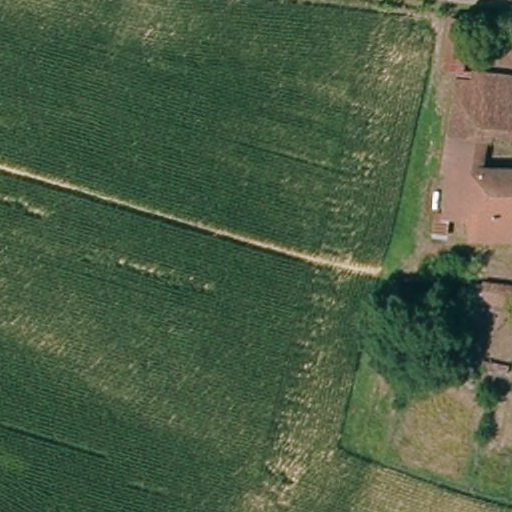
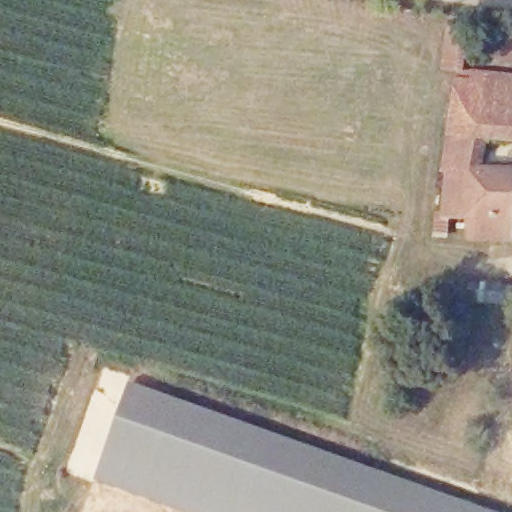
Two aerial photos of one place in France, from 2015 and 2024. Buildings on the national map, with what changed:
new [(464,240),(465,221),(447,220),(446,239),(431,237),(434,214),(440,215),(445,175),(441,174),(455,71),(441,70),(443,53),(466,56),(465,70),(512,75),(512,142),(486,140),(483,167),(512,169),(512,244),(464,240)]
demolished [(458,189),(465,91),(480,93),(481,71),(512,73),(512,140),(495,138),(491,168),(512,171),(512,234),(476,230),(478,218),(450,215),(448,232),(438,231),(441,188),(458,189)]
new [(95,480),(129,382),(493,512),(186,512),(95,480)]

